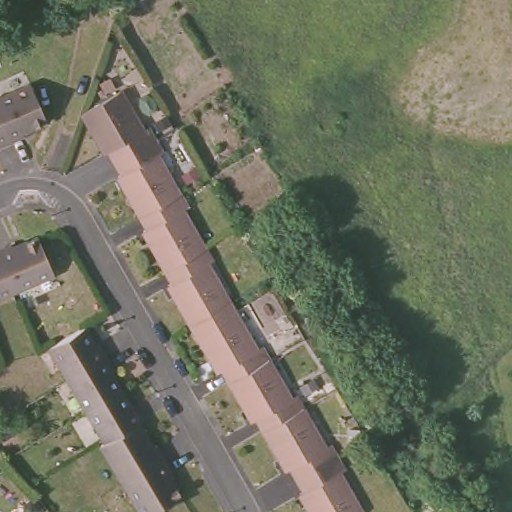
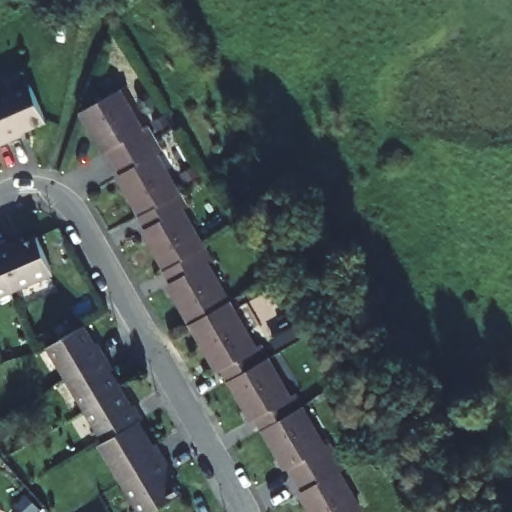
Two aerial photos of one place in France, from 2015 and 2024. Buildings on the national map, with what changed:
unchanged [(3,126),(0,119),(0,102),(30,89),(46,124),(22,135),(23,138),(11,144),(3,126)]
unchanged [(114,93),(136,129),(145,125),(152,138),(110,162),(102,148),(96,151),(73,113),(114,93)]
unchanged [(3,126),(11,144),(0,149),(0,119),(3,126)]
unchanged [(161,153),(149,161),(169,195),(131,216),(113,183),(120,178),(110,162),(152,138),(161,153)]
unchanged [(174,193),(181,207),(175,211),(197,251),(159,272),(137,234),(140,231),(131,216),(169,195),(174,193)]
unchanged [(9,258),(7,255),(22,248),(24,252),(48,241),(64,277),(0,305),(0,262),(9,258)]
unchanged [(202,248),(209,260),(197,267),(218,306),(183,327),(160,289),(167,285),(159,272),(197,251),(202,248)]
unchanged [(245,352),(257,345),(260,351),(256,354),(262,363),(224,385),(215,370),(210,373),(183,327),(218,306),(245,352)]
unchanged [(112,445),(56,350),(89,330),(100,349),(104,347),(120,373),(116,375),(137,411),(141,409),(149,423),(145,425),(112,445)]
unchanged [(257,435),(249,421),(245,423),(224,385),(262,363),(285,403),(297,395),(305,409),(300,412),(257,435)]
unchanged [(293,480),(284,465),(277,469),(257,435),(300,412),(320,447),(329,442),(337,455),(293,480)]
unchanged [(112,445),(145,425),(159,450),(164,447),(180,475),(176,477),(188,498),(166,512),(146,512),(108,447),(112,445)]
unchanged [(336,474),(358,512),(301,512),(293,498),(301,493),(293,480),(337,455),(345,469),(336,474)]

